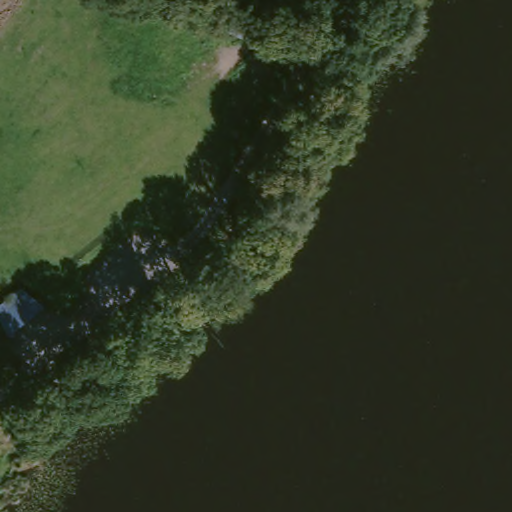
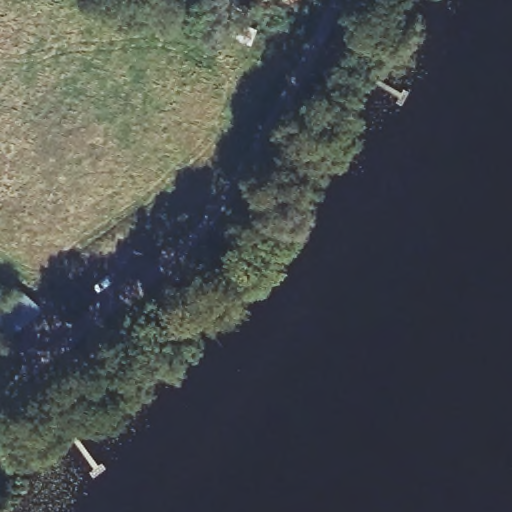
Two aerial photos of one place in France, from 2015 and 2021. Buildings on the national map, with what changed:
unchanged [(0,322),(0,303),(24,286),(43,302),(8,333),(0,322)]

